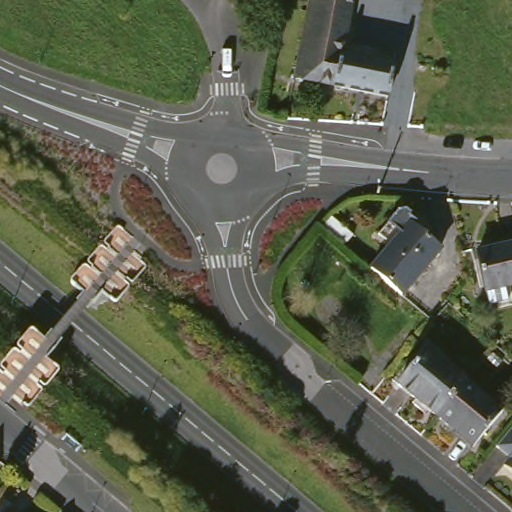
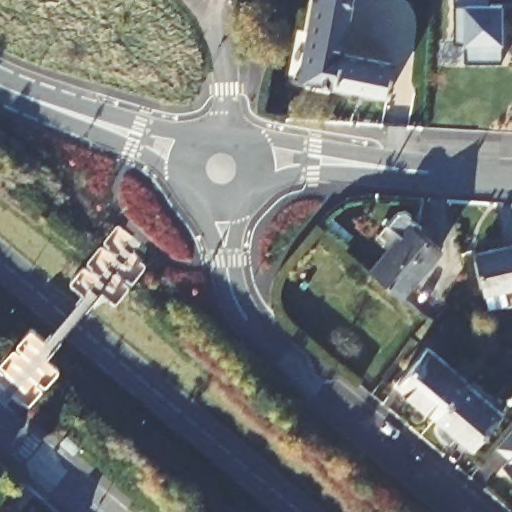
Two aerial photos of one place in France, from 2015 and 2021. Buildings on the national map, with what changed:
unchanged [(318,0),(361,0),(351,55),(403,65),(397,97),(303,78),(318,0)]
new [(464,44),(454,43),(454,0),(489,0),(489,5),(502,5),(502,44),(502,62),(466,63),(464,44)]
unchanged [(407,295),(373,267),(388,247),(372,240),(396,212),(408,220),(441,249),(407,295)]
unchanged [(489,291),(480,252),(512,244),(512,286),(489,291)]
unchanged [(401,385),(433,348),(469,380),(468,381),(438,416),(401,385)]
unchanged [(468,381),(505,413),(475,448),(438,416),(468,381)]
unchanged [(505,455),(512,448),(512,461),(505,455)]
unchanged [(511,473),(512,472),(512,474),(511,473)]

